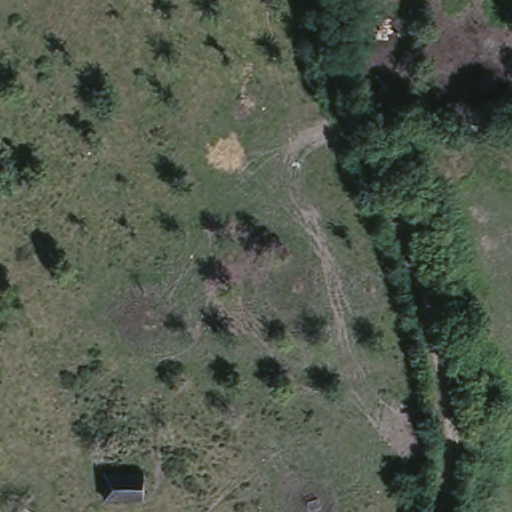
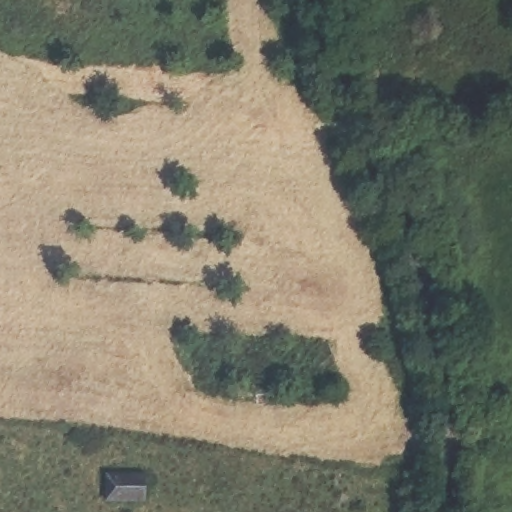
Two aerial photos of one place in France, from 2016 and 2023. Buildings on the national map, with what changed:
unchanged [(143,500),(104,499),(105,473),(144,473),(143,500)]

